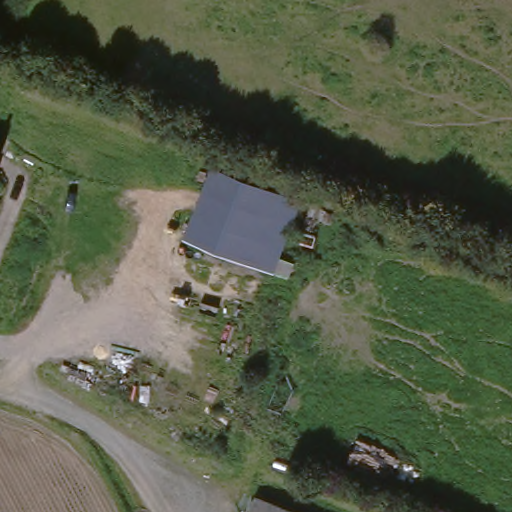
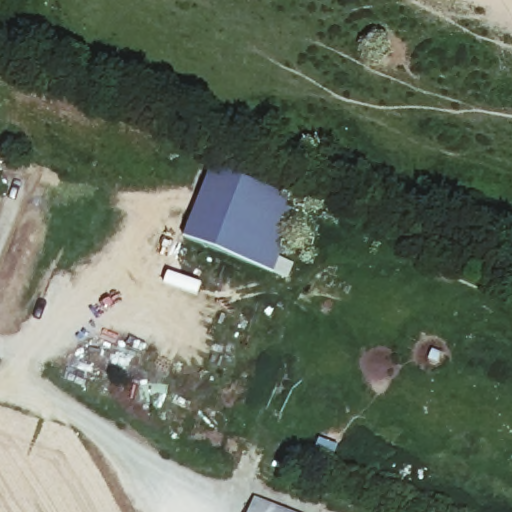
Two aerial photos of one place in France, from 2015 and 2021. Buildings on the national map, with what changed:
unchanged [(218,155),(281,179),(275,192),(301,201),(275,271),(183,238),(216,154),(218,155)]
unchanged [(271,511),(274,512),(271,512),(271,511)]

